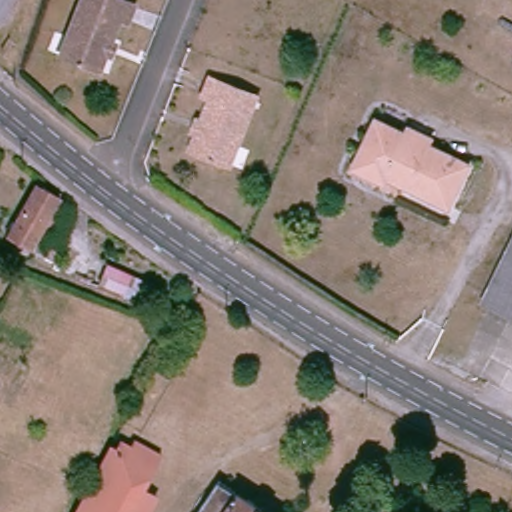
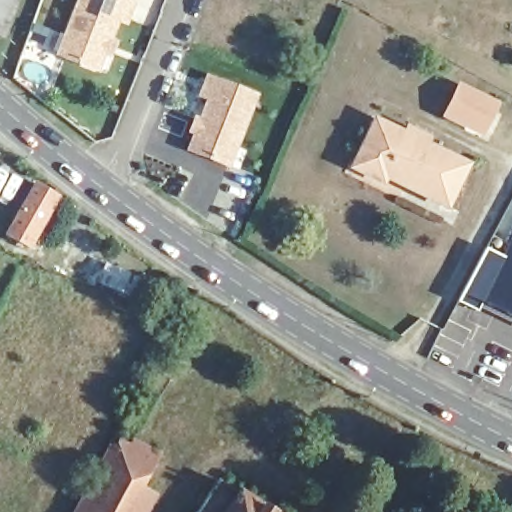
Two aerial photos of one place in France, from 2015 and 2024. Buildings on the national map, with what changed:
unchanged [(103,56),(96,75),(59,60),(81,0),(113,0),(133,8),(126,26),(116,22),(107,45),(115,48),(111,60),(103,56)]
unchanged [(194,121),(201,124),(209,103),(201,101),(208,80),(255,98),(235,151),(228,168),(190,152),(198,134),(190,132),(194,121)]
new [(442,117),(459,82),(501,102),(484,136),(442,117)]
unchanged [(449,211),(388,181),(383,189),(353,173),(377,125),(467,170),(449,211)]
unchanged [(29,244),(8,233),(33,185),(55,196),(29,244)]
unchanged [(512,246),(512,317),(484,303),(512,246)]
unchanged [(116,291),(95,282),(102,264),(125,273),(116,291)]
unchanged [(130,512),(79,512),(115,446),(118,448),(121,441),(139,453),(141,447),(159,458),(141,491),(130,512)]
unchanged [(220,486),(262,512),(203,512),(220,486)]
unchanged [(154,512),(130,512),(141,491),(159,501),(154,512)]

